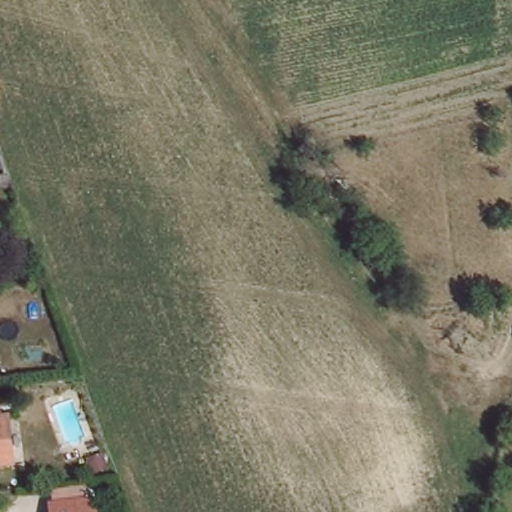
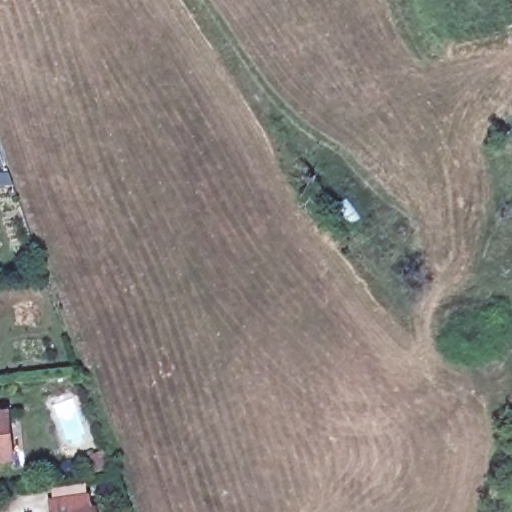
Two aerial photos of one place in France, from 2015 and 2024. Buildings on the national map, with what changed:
unchanged [(0,461),(0,400),(1,400),(3,414),(11,413),(16,458),(0,461)]
unchanged [(90,492),(93,507),(99,506),(100,512),(56,512),(54,498),(90,492)]

